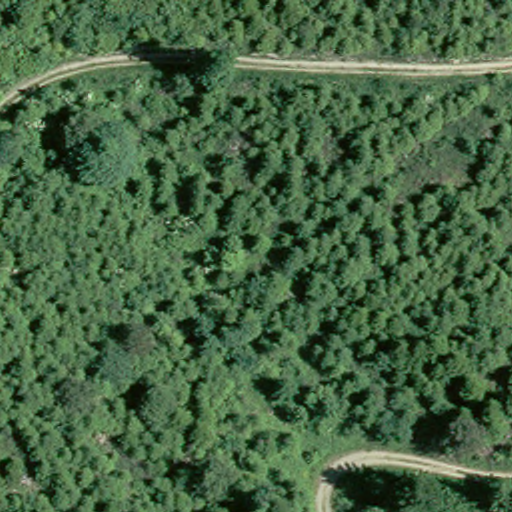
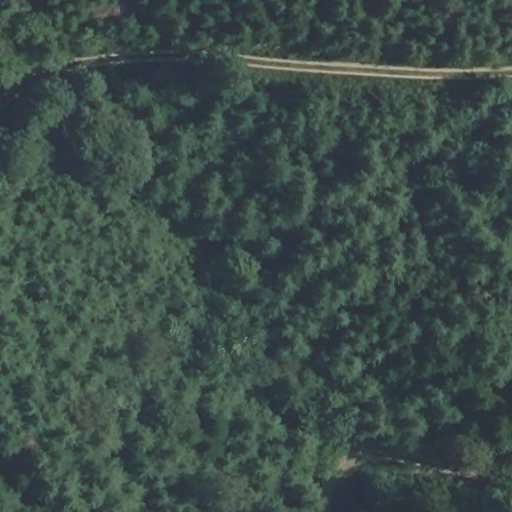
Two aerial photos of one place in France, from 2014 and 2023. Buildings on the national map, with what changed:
[]

